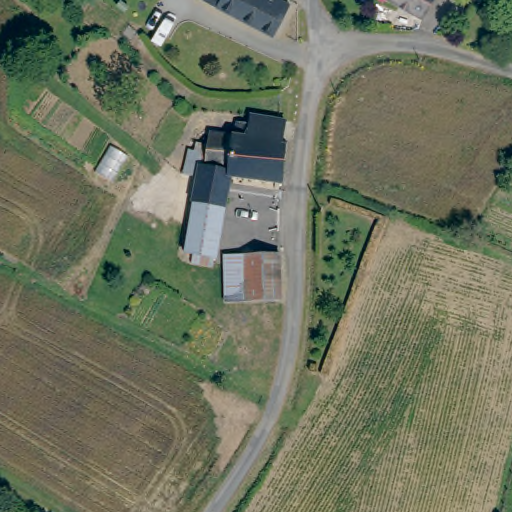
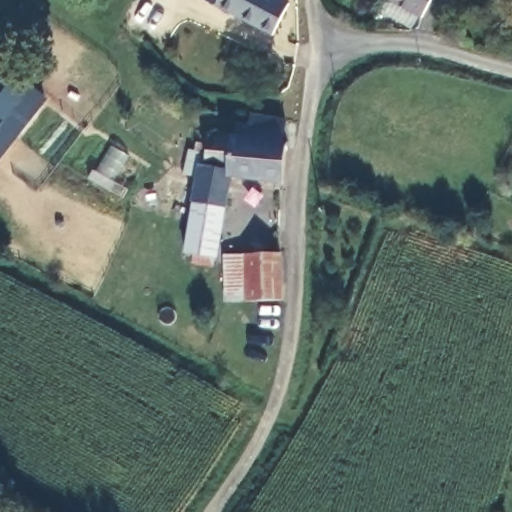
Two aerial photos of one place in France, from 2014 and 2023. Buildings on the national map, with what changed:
unchanged [(205,0),(276,0),(283,4),(265,35),(265,36),(205,0)]
unchanged [(418,24),(382,0),(436,0),(418,24)]
new [(0,163),(0,127),(31,86),(48,99),(0,163)]
unchanged [(234,130),(236,118),(237,118),(248,119),(250,120),(251,110),(285,115),(283,134),(289,135),(283,183),(233,176),(224,258),(190,253),(202,157),(208,157),(209,144),(194,142),(197,126),(234,130)]
unchanged [(232,298),(234,250),(285,251),(286,273),(286,300),(232,298)]

